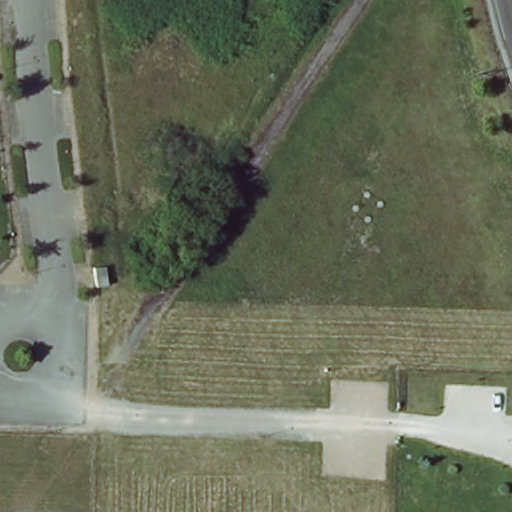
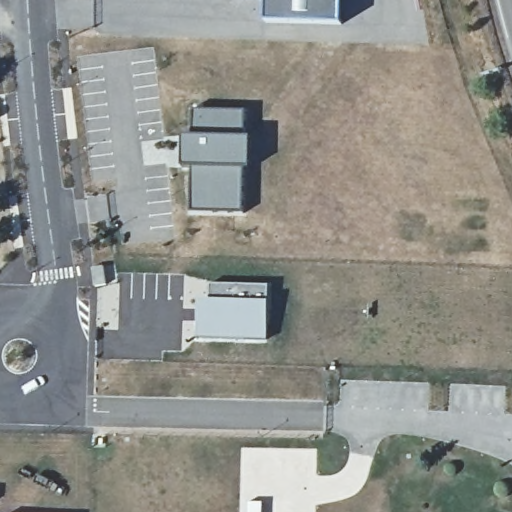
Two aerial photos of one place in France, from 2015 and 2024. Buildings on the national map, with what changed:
new [(336,25),(262,22),(262,0),(337,0),(336,25)]
new [(243,112),(238,214),(191,214),(191,166),(178,165),(178,135),(193,134),(193,110),(243,112)]
new [(208,299),(208,285),(266,285),(265,342),(193,340),(193,299),(208,299)]
demolished [(485,480),(474,512),(450,512),(463,473),(485,480)]

